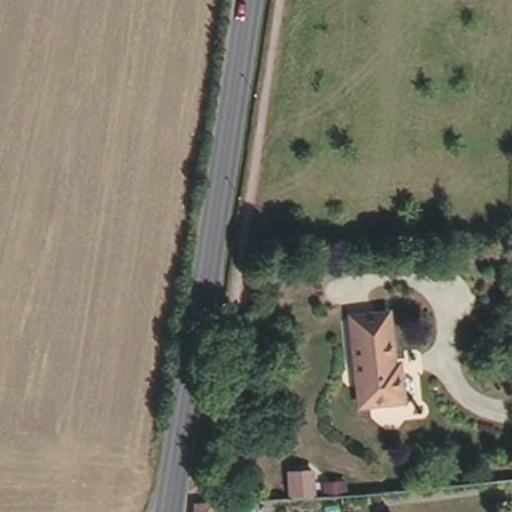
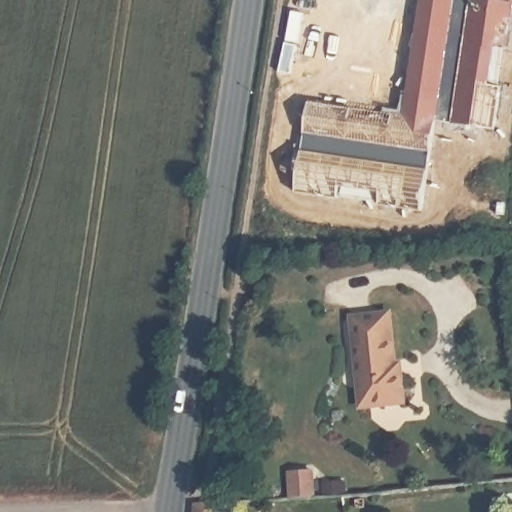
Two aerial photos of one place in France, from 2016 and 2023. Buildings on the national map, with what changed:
new [(419,0),(498,0),(512,2),(512,6),(496,131),(433,121),(419,210),(293,192),(308,104),(403,116),(419,0)]
unchanged [(404,371),(409,401),(361,404),(349,313),(386,309),(394,361),(402,360),(404,371)]
unchanged [(310,476),(310,494),(290,495),(289,477),(310,476)]
unchanged [(224,503),(224,512),(198,512),(200,504),(224,503)]

